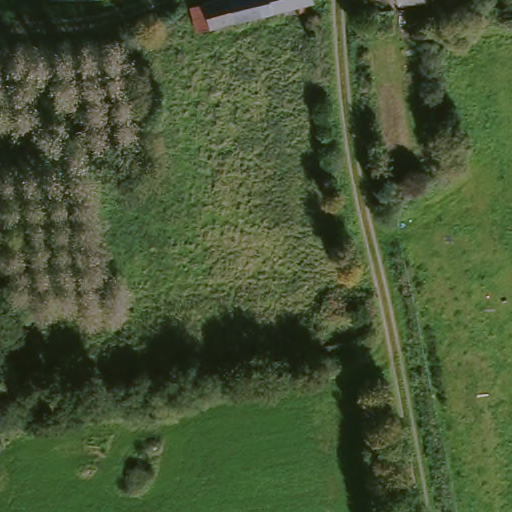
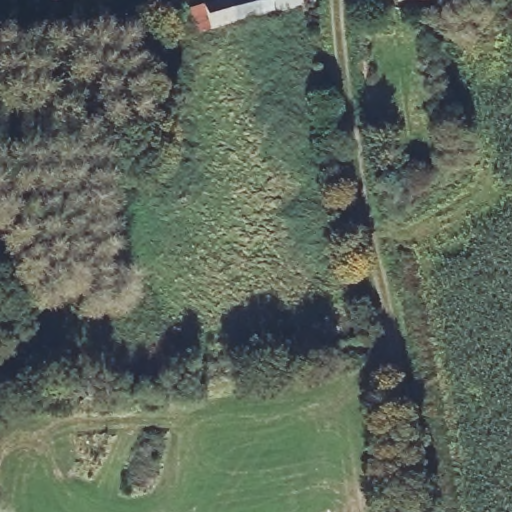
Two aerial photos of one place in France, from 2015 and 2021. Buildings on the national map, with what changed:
unchanged [(101,0),(52,5),(51,0),(101,0)]
unchanged [(232,27),(185,36),(184,24),(180,7),(215,0),(311,0),(312,11),(232,27)]

